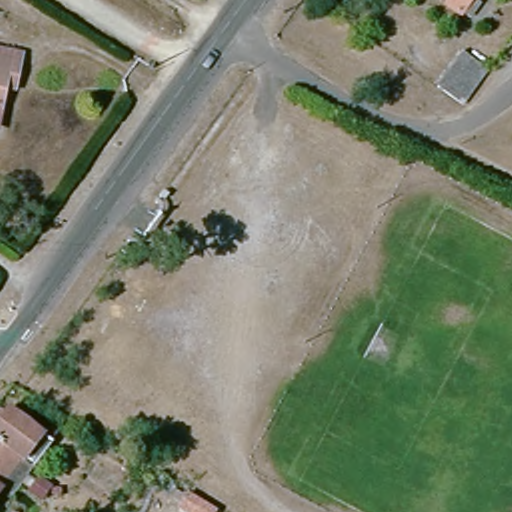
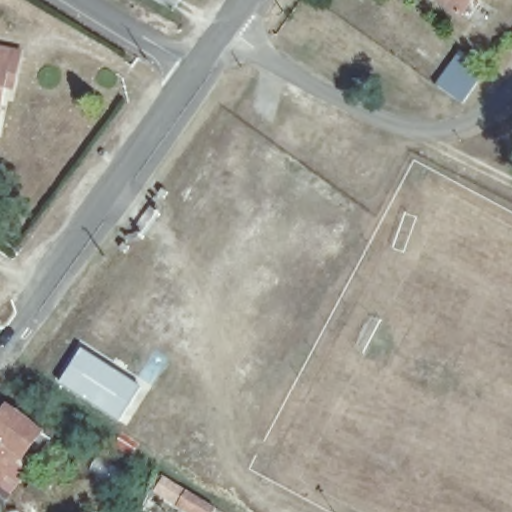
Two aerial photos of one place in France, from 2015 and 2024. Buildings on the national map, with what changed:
unchanged [(13,69),(11,89),(1,87),(0,90),(0,45),(15,47),(13,69)]
unchanged [(437,82),(461,50),(487,69),(464,102),(437,82)]
new [(121,421),(61,383),(83,350),(144,388),(121,421)]
unchanged [(36,431),(0,479),(0,412),(4,407),(36,431)]
demolished [(127,474),(114,499),(83,482),(96,456),(127,474)]

